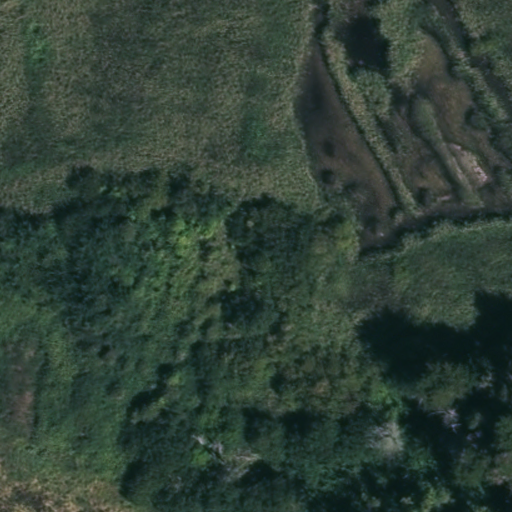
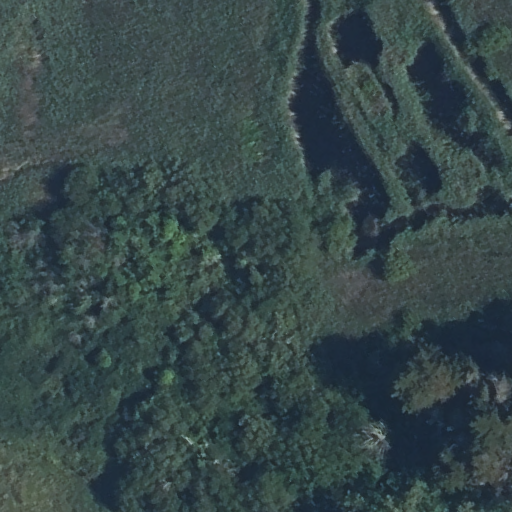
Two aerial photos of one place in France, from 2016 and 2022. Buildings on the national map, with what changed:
[]

